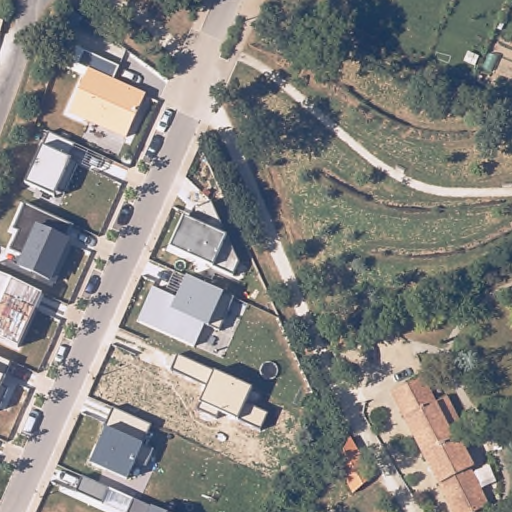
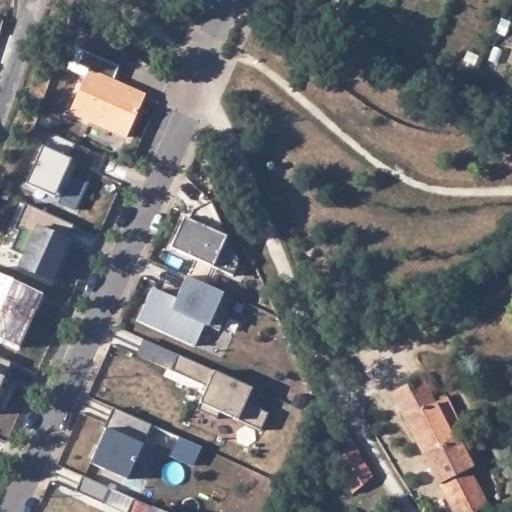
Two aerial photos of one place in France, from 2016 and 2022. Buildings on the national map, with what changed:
unchanged [(83,78),(70,70),(79,49),(119,66),(114,80),(145,94),(126,139),(69,113),(83,78)]
unchanged [(26,183),(43,147),(46,134),(71,145),(69,159),(77,163),(64,192),(57,189),(54,195),(26,183)]
unchanged [(213,266),(171,247),(185,218),(190,221),(193,210),(211,201),(238,262),(233,274),(213,266)]
unchanged [(71,223),(65,238),(72,241),(54,282),(15,265),(20,255),(11,250),(20,231),(15,230),(26,204),(71,223)]
unchanged [(222,294),(232,299),(219,329),(209,326),(197,346),(139,320),(152,288),(158,265),(172,271),(166,285),(179,292),(187,278),(222,294)]
unchanged [(0,340),(0,276),(42,294),(18,347),(0,340)]
unchanged [(213,372),(250,388),(244,404),(265,413),(259,428),(236,418),(220,412),(216,417),(196,410),(201,403),(208,385),(172,369),(177,355),(213,372)]
unchanged [(10,363),(4,378),(0,386),(0,359),(10,363)]
unchanged [(432,406),(443,400),(453,421),(453,422),(459,436),(453,439),(469,470),(465,472),(483,508),(477,511),(477,512),(449,512),(390,393),(419,379),(432,406)]
unchanged [(7,390),(0,405),(0,387),(7,390)]
unchanged [(105,428),(111,408),(149,424),(141,445),(153,450),(146,465),(134,460),(126,479),(90,464),(105,428)]
unchanged [(355,438),(376,476),(357,494),(341,465),(355,438)]
unchanged [(151,508),(160,512),(121,512),(75,491),(82,477),(151,508)]

